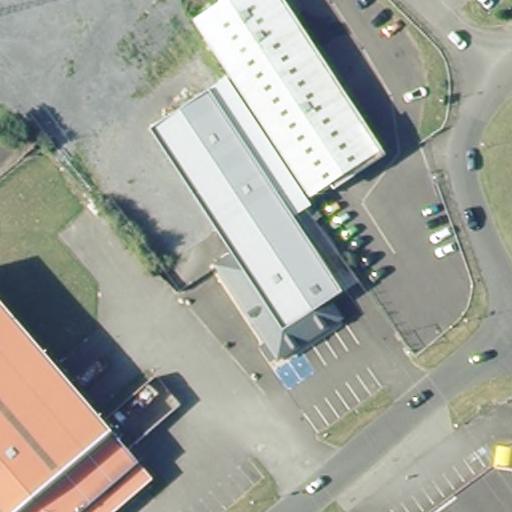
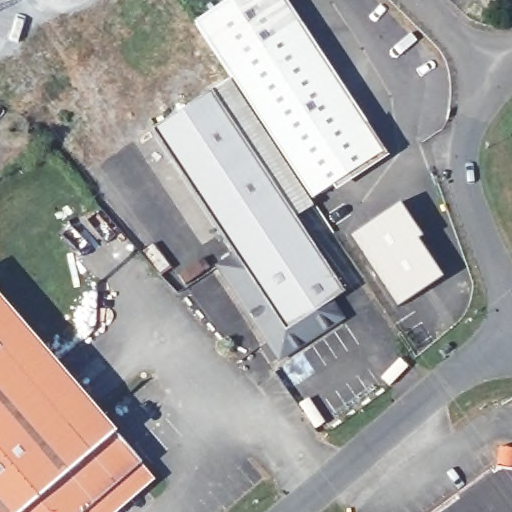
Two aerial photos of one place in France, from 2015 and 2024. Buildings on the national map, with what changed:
unchanged [(312,198),(229,73),(195,20),(227,0),(276,0),(378,154),(312,198)]
unchanged [(344,295),(330,304),(341,320),(280,361),(219,269),(235,259),(151,133),(210,94),(222,110),(344,295)]
new [(396,308),(350,236),(397,205),(420,239),(416,243),(440,278),(396,308)]
unchanged [(0,300),(140,464),(85,512),(0,512),(0,300)]
unchanged [(487,475),(495,469),(499,451),(512,453),(512,512),(439,512),(487,475)]

